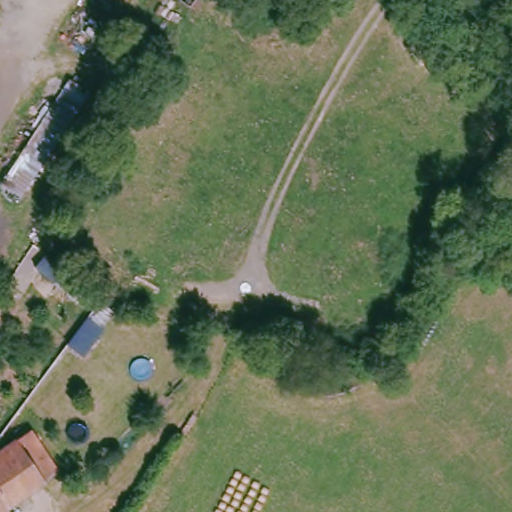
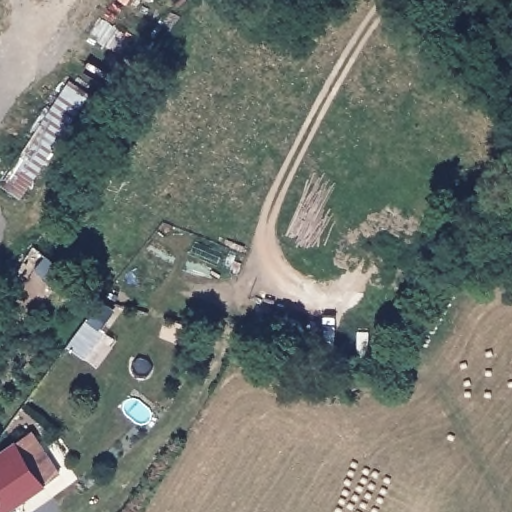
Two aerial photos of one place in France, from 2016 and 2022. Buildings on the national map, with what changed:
unchanged [(90,94),(23,196),(4,183),(70,80),(90,94)]
unchanged [(28,427),(30,424),(60,468),(2,506),(6,512),(0,512),(0,445),(28,427)]

